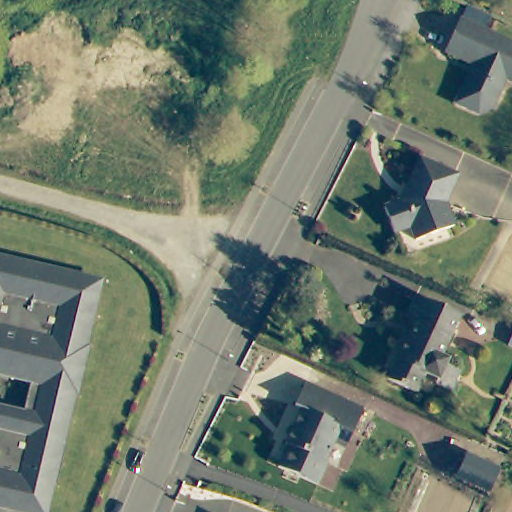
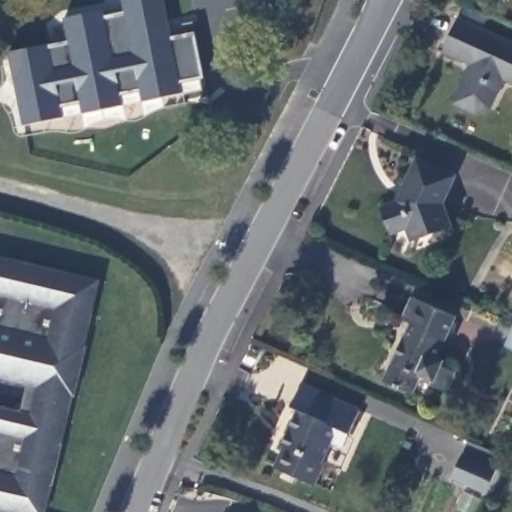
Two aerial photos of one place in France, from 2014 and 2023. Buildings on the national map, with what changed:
new [(50,39),(51,40),(69,36),(65,13),(105,4),(107,11),(126,6),(124,0),(167,0),(173,31),(196,26),(206,71),(183,76),(185,87),(145,96),(142,85),(123,89),(126,100),(85,108),(82,98),(64,102),(66,112),(25,121),(10,48),(50,39)]
unchanged [(512,47),(512,88),(501,83),(488,111),(475,118),(449,106),(464,73),(469,76),(472,70),(440,55),(455,21),(512,47)]
unchanged [(442,207),(451,230),(412,244),(407,231),(391,237),(381,213),(397,206),(416,163),(453,180),(442,207)]
unchanged [(33,266),(41,267),(41,269),(92,281),(85,314),(92,315),(85,348),(87,348),(75,397),(72,396),(62,444),(63,444),(54,486),(51,485),(45,512),(14,512),(0,509),(0,407),(21,411),(28,385),(0,379),(0,259),(32,267),(33,266)]
unchanged [(447,375),(438,396),(423,390),(425,385),(413,379),(406,397),(377,384),(386,365),(387,365),(405,328),(394,323),(404,301),(447,321),(429,361),(437,364),(434,369),(447,375)]
unchanged [(512,321),(512,357),(497,350),(503,340),(512,321)]
unchanged [(328,436),(318,456),(321,457),(311,480),(272,462),(281,441),(279,440),(295,405),(288,402),(298,379),(356,405),(346,428),(340,441),(328,436)]
unchanged [(487,492),(453,477),(463,454),(498,469),(487,492)]

